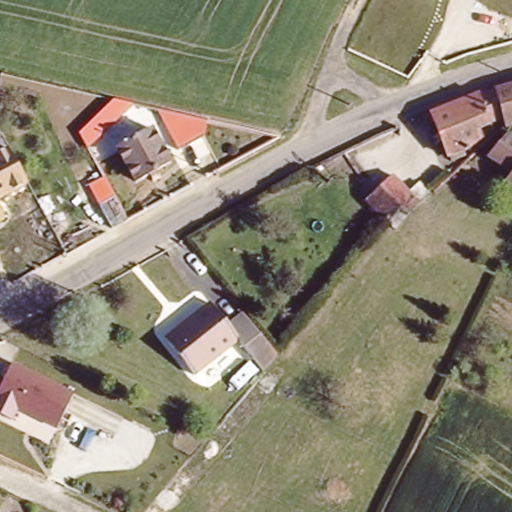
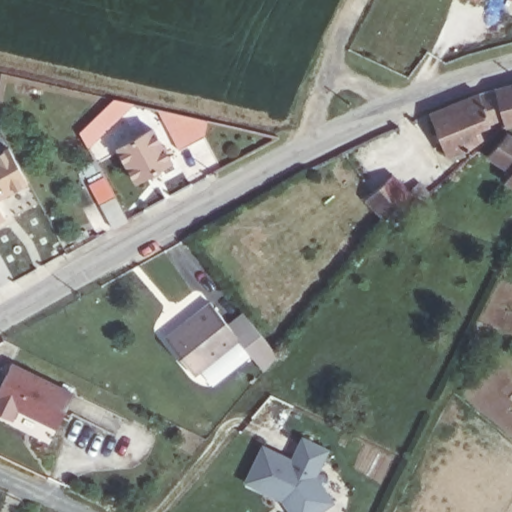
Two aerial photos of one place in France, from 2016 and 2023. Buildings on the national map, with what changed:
unchanged [(470,0),(481,0),(478,5),(470,0)]
unchanged [(512,119),(500,122),(497,116),(466,126),(470,139),(437,155),(413,112),(512,82),(512,119)]
unchanged [(78,133),(114,99),(135,105),(88,149),(78,133)]
unchanged [(156,110),(207,121),(205,138),(178,150),(156,110)]
unchanged [(506,125),(512,128),(512,161),(493,154),(506,125)]
unchanged [(173,161),(135,182),(115,148),(153,127),(173,161)]
unchanged [(31,182),(0,198),(0,150),(11,145),(31,182)]
unchanged [(512,167),(512,175),(509,174),(512,167)]
unchanged [(396,215),(370,194),(384,178),(392,169),(426,196),(419,202),(405,203),(396,215)]
unchanged [(95,207),(84,187),(102,176),(114,197),(95,207)]
unchanged [(7,220),(0,223),(0,202),(7,220)]
demolished [(115,235),(103,215),(121,204),(133,225),(115,235)]
unchanged [(262,371),(240,342),(196,378),(163,338),(208,301),(227,322),(241,311),(275,353),(262,371)]
unchanged [(74,393),(62,430),(20,410),(15,423),(0,415),(0,392),(12,363),(75,393),(74,393)]
new [(262,445),(291,458),(302,436),(330,450),(317,476),(335,503),(323,512),(289,512),(282,501),(244,482),(262,445)]

